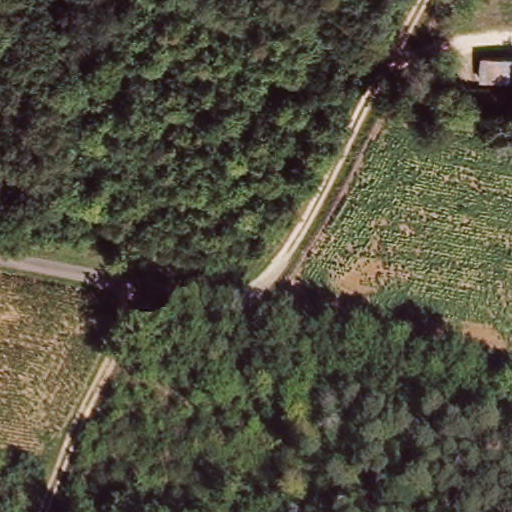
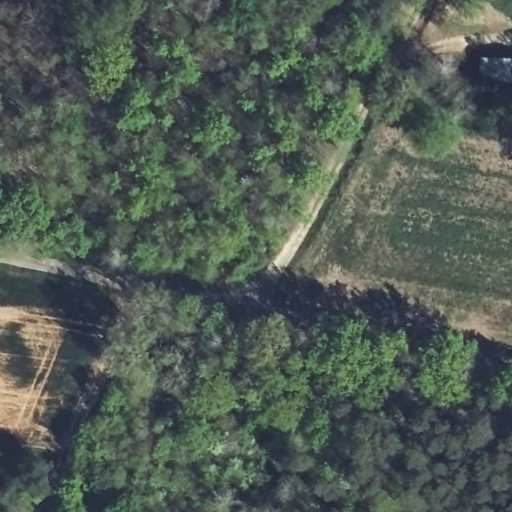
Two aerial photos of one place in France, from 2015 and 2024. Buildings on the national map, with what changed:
unchanged [(473,86),(476,59),(512,60),(512,88),(473,86)]

